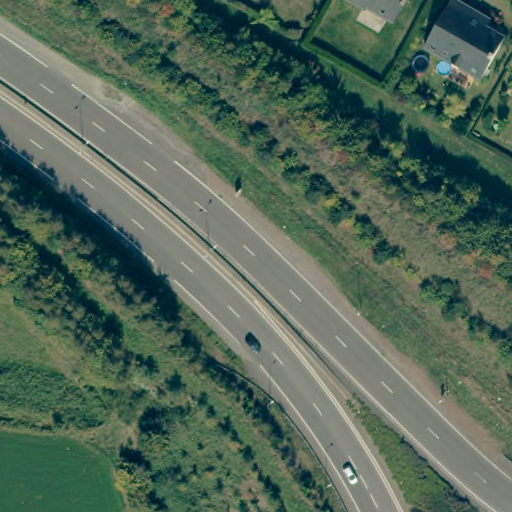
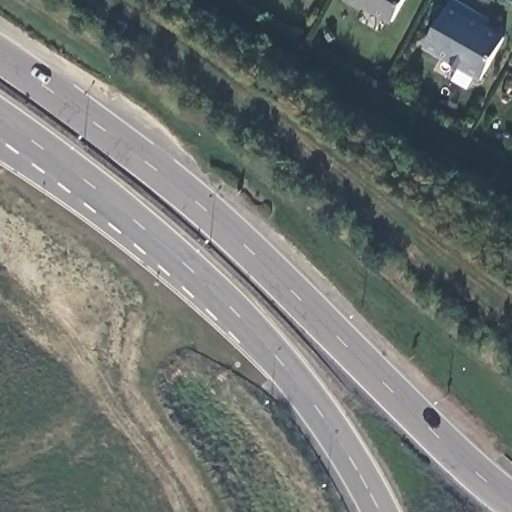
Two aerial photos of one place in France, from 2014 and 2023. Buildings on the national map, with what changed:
unchanged [(368,8),(362,9),(346,0),(405,0),(393,21),(368,8)]
unchanged [(425,48),(452,0),(457,0),(483,15),(491,19),(487,26),(506,37),(482,80),(425,48)]

